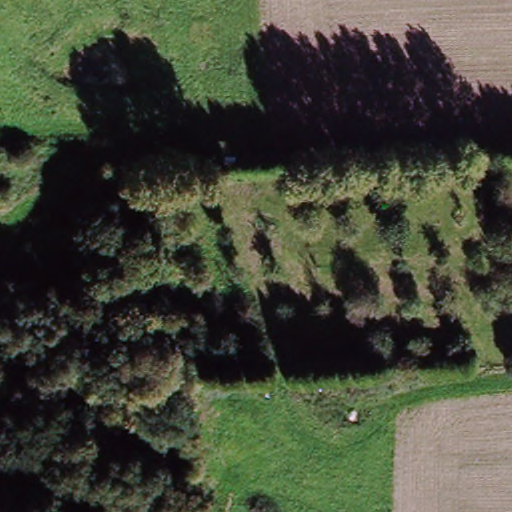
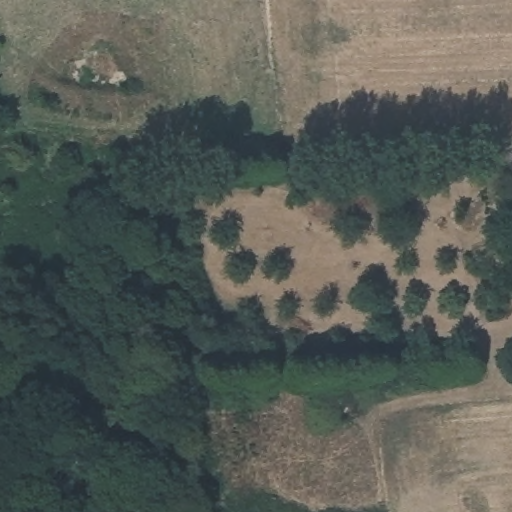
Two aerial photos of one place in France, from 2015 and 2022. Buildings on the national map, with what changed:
[]

